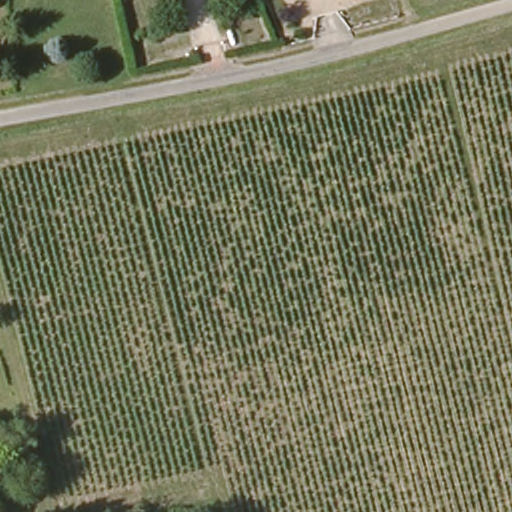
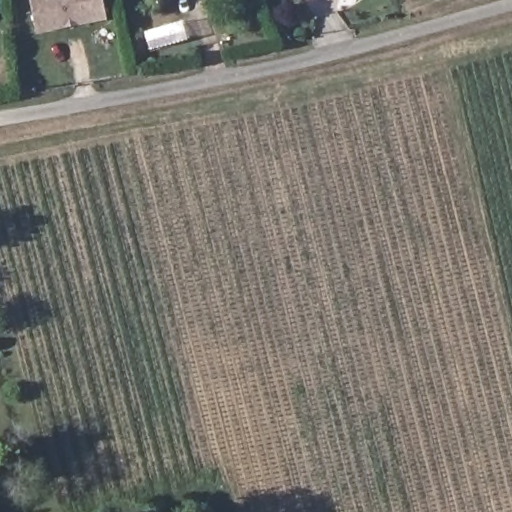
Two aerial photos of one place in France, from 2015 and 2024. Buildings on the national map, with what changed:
new [(40,34),(33,0),(102,0),(106,21),(40,34)]

